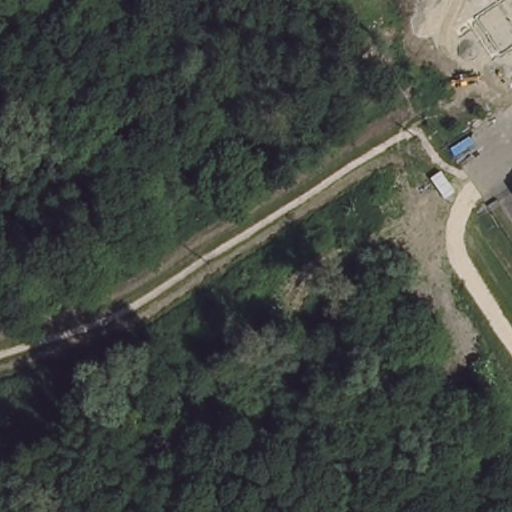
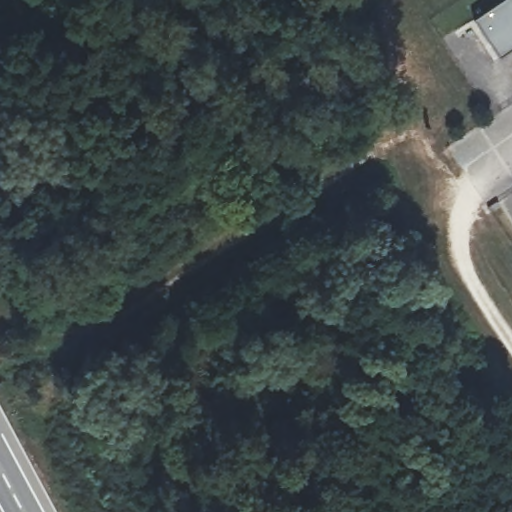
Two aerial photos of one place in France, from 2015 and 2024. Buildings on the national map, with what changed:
new [(504,54),(477,15),(500,0),(512,0),(512,49),(504,54)]

